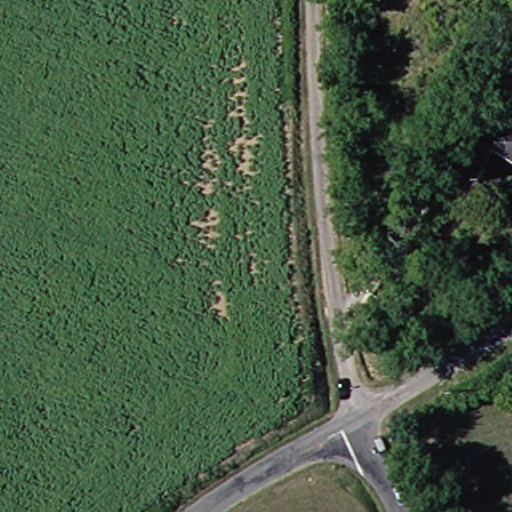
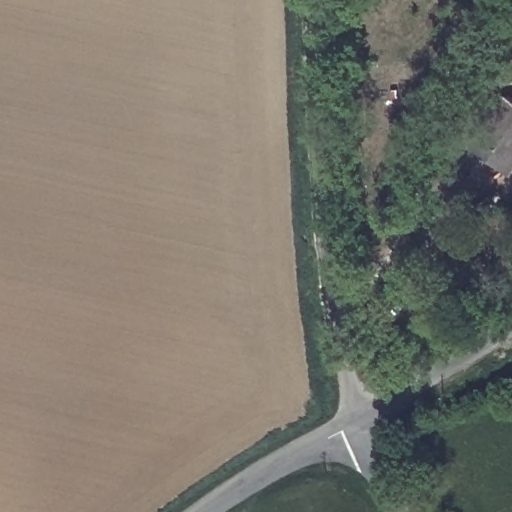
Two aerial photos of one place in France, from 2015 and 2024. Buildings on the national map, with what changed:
unchanged [(512,167),(481,148),(512,101),(512,167)]

